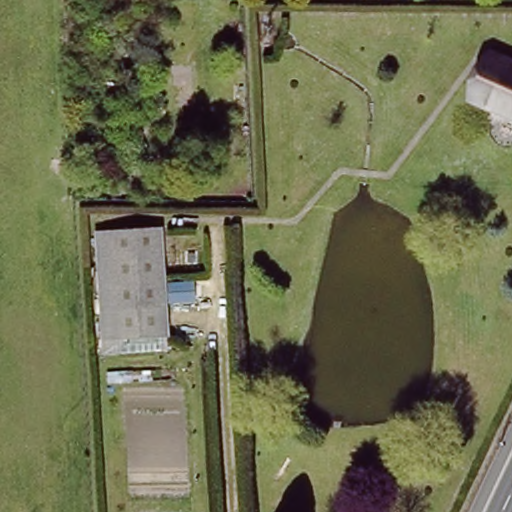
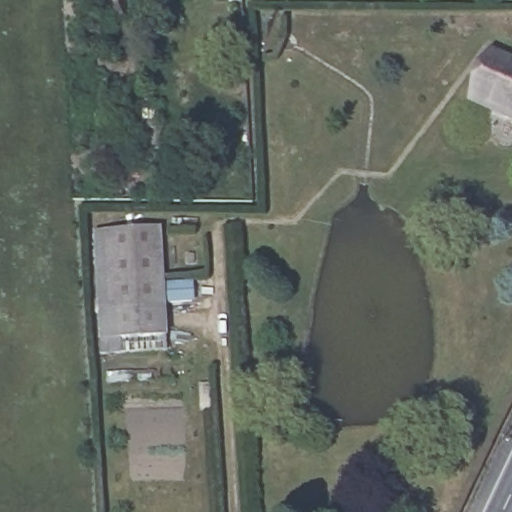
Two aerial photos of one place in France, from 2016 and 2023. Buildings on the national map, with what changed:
unchanged [(512,65),(512,120),(480,106),(500,60),(512,65)]
unchanged [(100,338),(93,233),(160,227),(169,336),(100,338)]

